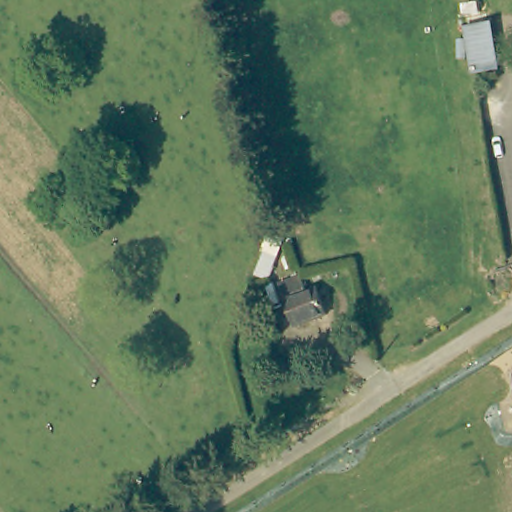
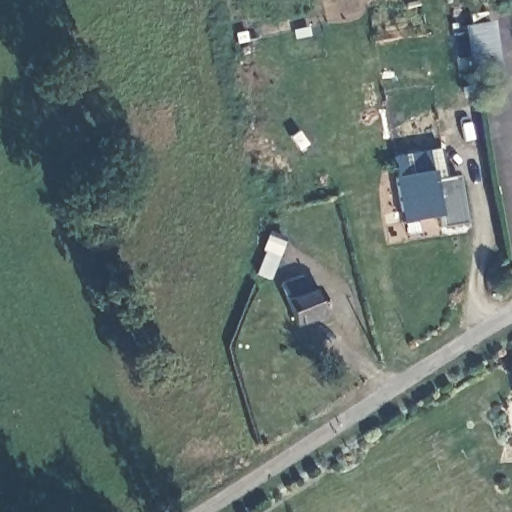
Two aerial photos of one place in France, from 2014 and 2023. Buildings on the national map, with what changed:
unchanged [(451,28),(468,26),(492,24),(498,62),(500,68),(475,71),(457,73),(451,28)]
new [(442,228),(441,217),(403,223),(396,178),(398,177),(395,155),(441,149),(447,178),(460,177),(467,223),(442,228)]
unchanged [(270,274),(257,269),(266,244),(281,250),(270,274)]
unchanged [(297,327),(287,298),(285,298),(280,283),(304,274),(310,290),(320,286),(331,315),(297,327)]

